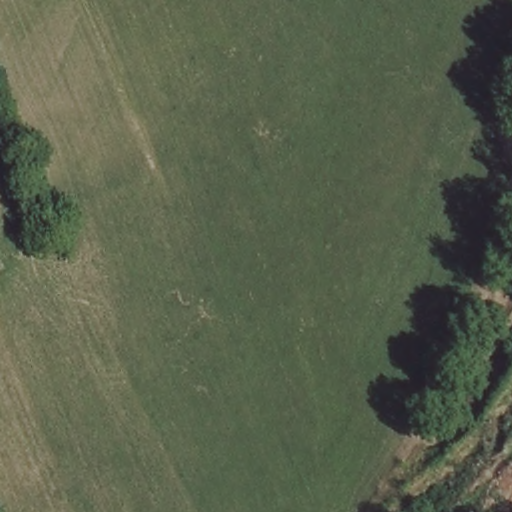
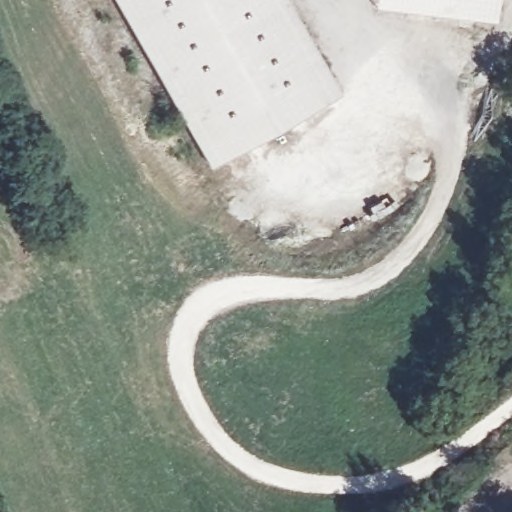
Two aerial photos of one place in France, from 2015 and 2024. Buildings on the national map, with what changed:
new [(212,167),(118,0),(289,0),(341,93),(212,167)]
new [(498,0),(496,21),(376,6),(377,0),(498,0)]

